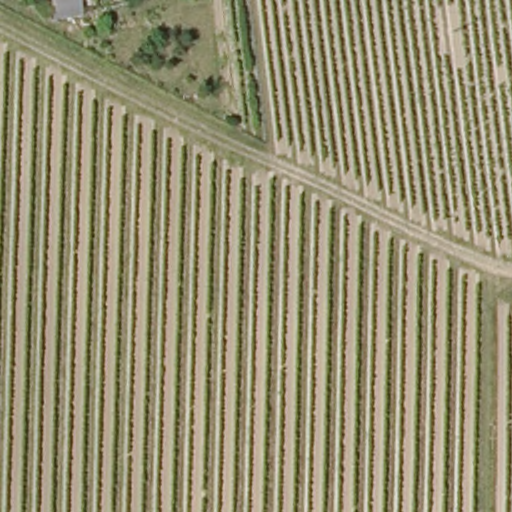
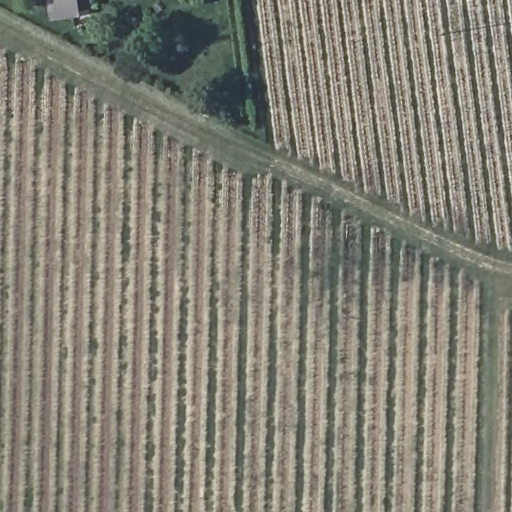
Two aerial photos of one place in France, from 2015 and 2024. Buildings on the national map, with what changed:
unchanged [(55,9),(55,0),(83,0),(83,8),(55,9)]

